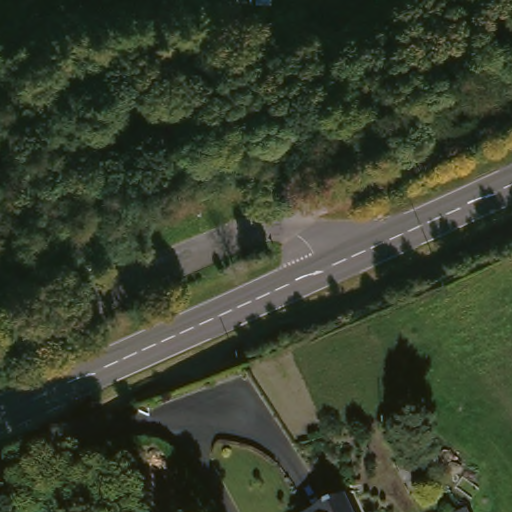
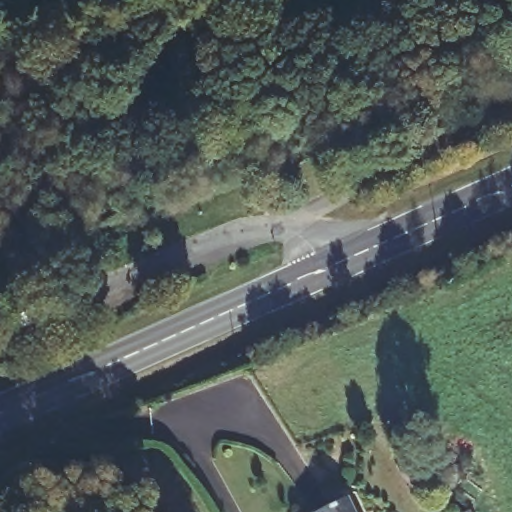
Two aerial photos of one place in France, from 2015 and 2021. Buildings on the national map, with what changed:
unchanged [(357,512),(311,512),(349,494),(357,512)]
unchanged [(470,512),(462,512),(469,509),(470,512)]

